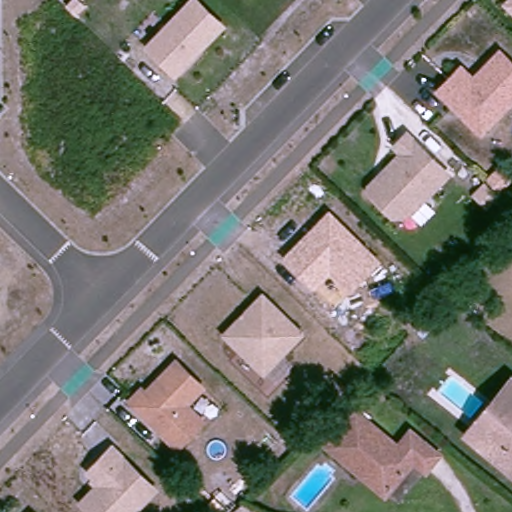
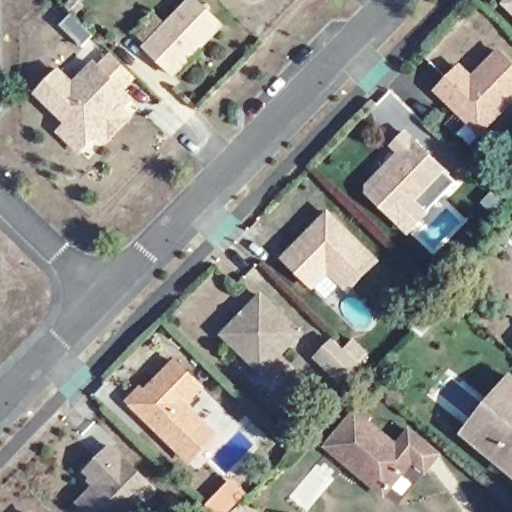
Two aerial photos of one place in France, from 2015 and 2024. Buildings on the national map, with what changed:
unchanged [(69,0),(80,0),(83,3),(75,12),(69,7),(66,3),(69,0)]
unchanged [(507,3),(510,0),(512,0),(512,8),(507,3)]
unchanged [(195,1),(223,28),(176,76),(148,49),(195,1)]
unchanged [(461,111),(440,91),(463,68),(474,79),(477,78),(485,69),(502,52),(512,62),(512,103),(497,118),(483,132),(461,111)]
new [(58,65),(75,82),(96,61),(141,104),(91,155),(60,125),(68,116),(38,87),(58,65)]
unchanged [(404,158),(396,151),(408,139),(449,179),(409,220),(394,220),(372,197),(372,191),(378,185),(385,177),(404,158)]
unchanged [(501,164),(512,174),(501,186),(490,175),(501,164)]
unchanged [(499,192),(488,203),(475,190),(486,179),(499,192)]
unchanged [(310,230),(330,209),(378,257),(350,285),(331,266),(315,282),(286,254),(303,237),(310,230)]
unchanged [(264,292),(302,329),(265,367),(227,330),(264,292)]
unchanged [(338,335),(360,357),(343,374),(321,353),(338,335)]
unchanged [(163,434),(131,402),(143,390),(147,394),(152,389),(178,363),(203,388),(186,405),(204,422),(185,442),(179,449),(163,434)]
unchanged [(468,428),(487,406),(512,377),(512,400),(499,415),(480,438),(468,428)]
unchanged [(480,438),(499,415),(512,400),(512,465),(480,438)]
unchanged [(366,475),(330,445),(359,411),(400,445),(413,430),(442,454),(428,470),(416,460),(395,486),(388,493),(366,475)]
unchanged [(92,512),(83,504),(103,483),(91,471),(115,447),(158,489),(136,512),(92,512)]
unchanged [(257,512),(232,512),(241,503),(245,505),(257,512)]

